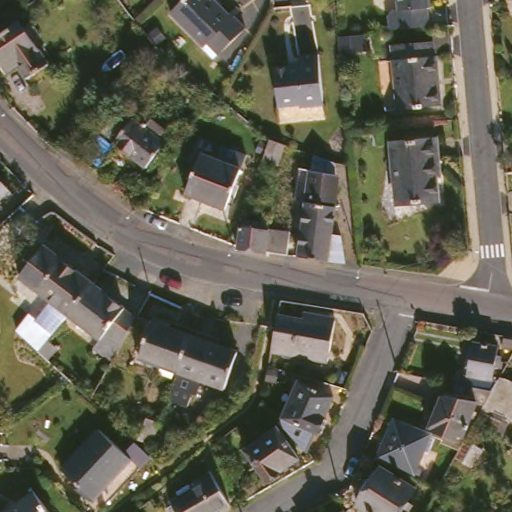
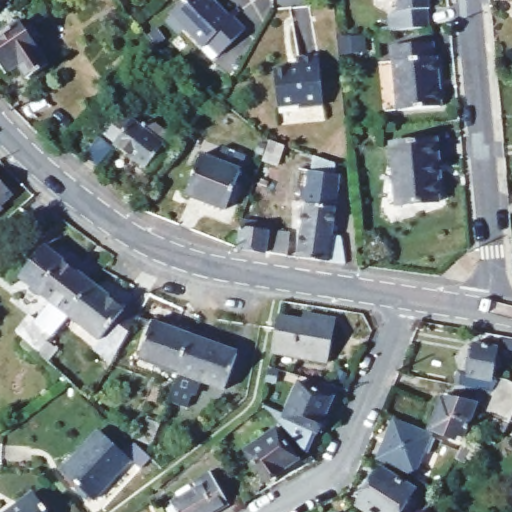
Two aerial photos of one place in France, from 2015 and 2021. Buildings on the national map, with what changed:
unchanged [(225,3),(236,14),(241,10),(245,13),(240,19),(250,28),(226,55),(211,41),(208,45),(175,12),(187,0),(216,0),(222,5),(225,3)]
unchanged [(430,8),(432,26),(411,28),(394,30),(393,15),(397,10),(403,10),(402,0),(431,0),(432,7),(430,8)]
unchanged [(0,11),(0,9),(1,10),(0,11)]
unchanged [(22,20),(42,48),(47,44),(54,54),(51,56),(50,57),(57,68),(37,84),(25,69),(14,77),(6,65),(0,57),(0,47),(6,44),(0,35),(0,34),(10,28),(22,20)]
unchanged [(158,65),(147,55),(150,52),(147,50),(138,37),(142,33),(150,42),(153,47),(166,57),(158,65)]
unchanged [(433,43),(434,57),(437,58),(441,106),(398,109),(392,46),(433,43)]
unchanged [(328,105),(305,107),(305,105),(283,107),(279,69),(294,67),(294,65),(304,64),(303,56),(323,55),(328,105)]
unchanged [(122,120),(124,118),(139,130),(141,129),(150,137),(157,129),(168,138),(177,145),(149,177),(106,140),(122,120)]
unchanged [(397,141),(437,137),(440,159),(434,160),(437,200),(397,205),(391,142),(397,141)]
unchanged [(262,162),(270,142),(273,143),(284,146),(276,167),(262,163),(262,162)]
unchanged [(230,165),(246,170),(232,209),(192,195),(207,156),(230,165)]
unchanged [(308,205),(297,203),(302,170),(312,172),(315,156),(337,163),(337,175),(339,183),(341,194),(335,235),(305,230),(307,209),(308,205)]
unchanged [(6,199),(9,204),(0,211),(0,166),(19,187),(6,199)]
unchanged [(273,224),(272,232),(281,234),(292,236),(292,239),(288,255),(242,249),(247,219),(247,218),(273,224)]
unchanged [(341,236),(345,237),(346,263),(301,257),(305,230),(335,235),(341,236)]
unchanged [(31,270),(49,244),(55,247),(59,250),(100,282),(75,313),(46,351),(24,331),(37,315),(47,321),(59,302),(26,276),(31,270)]
unchanged [(132,306),(131,308),(143,317),(122,358),(100,346),(107,339),(75,313),(100,282),(132,306)]
unchanged [(283,313),(301,317),(302,310),(312,311),(335,317),(327,360),(272,348),(279,312),(283,313)]
unchanged [(144,360),(157,320),(160,321),(163,322),(167,324),(171,325),(176,326),(177,322),(197,330),(182,373),(144,360)]
unchanged [(222,337),(224,338),(222,346),(242,352),(231,390),(203,380),(199,393),(178,386),(182,373),(197,330),(222,337)]
unchanged [(472,382),(460,380),(462,369),(468,370),(474,336),(488,338),(500,340),(502,340),(501,348),(504,350),(503,356),(506,357),(504,365),(497,364),(496,375),(501,375),(493,387),(472,382)]
unchanged [(502,372),(508,375),(512,377),(512,415),(505,431),(485,422),(477,417),(486,401),(493,387),(501,375),(502,372)]
unchanged [(486,401),(479,401),(462,432),(436,426),(442,393),(457,396),(460,380),(472,382),(493,387),(486,401)]
unchanged [(327,393),(336,397),(308,447),(282,422),(303,381),(327,393)]
unchanged [(396,422),(398,415),(435,431),(419,464),(425,466),(422,471),(382,453),(396,422)]
unchanged [(165,422),(157,443),(146,440),(153,418),(165,422)]
unchanged [(280,426),(301,458),(268,480),(248,448),(280,426)]
unchanged [(106,429),(117,440),(135,460),(94,497),(65,466),(106,429)]
unchanged [(511,435),(512,432),(512,435),(511,435)]
unchanged [(462,443),(463,440),(472,445),(465,458),(456,454),(460,447),(462,443)]
unchanged [(417,487),(399,512),(376,512),(360,500),(365,495),(367,491),(370,488),(372,485),(375,481),(387,466),(417,487)]
unchanged [(198,487),(202,485),(199,479),(216,470),(232,503),(215,512),(172,512),(168,503),(175,500),(198,487)]
unchanged [(50,512),(4,512),(34,491),(50,512)]
unchanged [(351,510),(352,512),(347,512),(351,510)]

